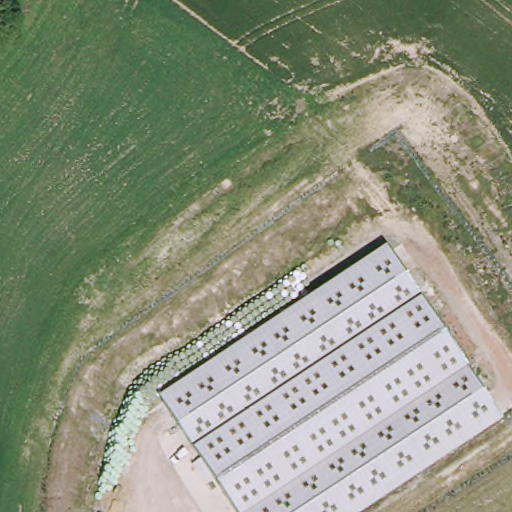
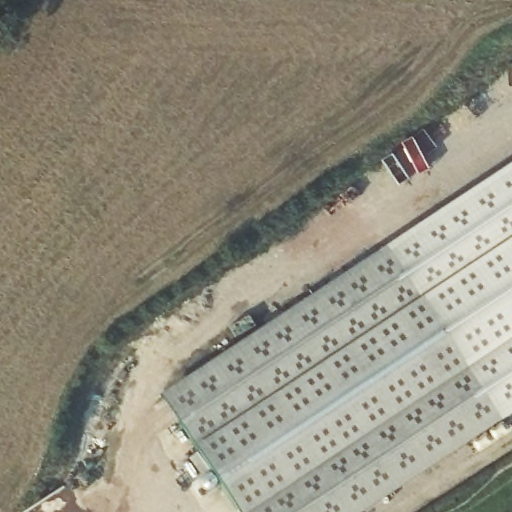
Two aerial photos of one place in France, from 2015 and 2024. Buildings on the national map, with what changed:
new [(512,162),(512,413),(505,417),(386,245),(512,162)]
unchanged [(505,417),(355,512),(238,512),(161,394),(386,245),(505,417)]

